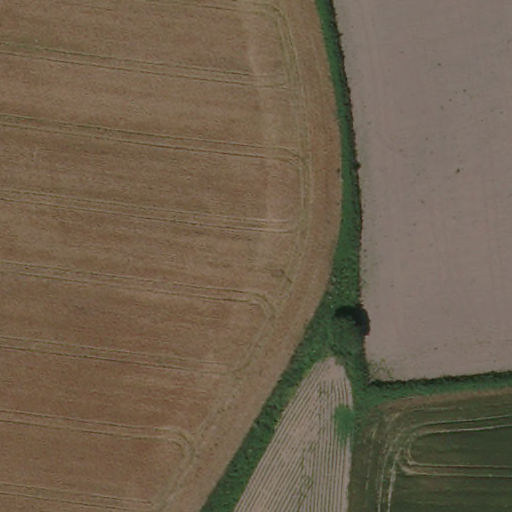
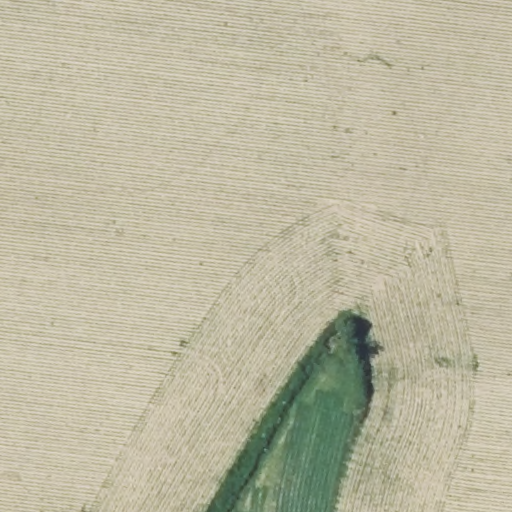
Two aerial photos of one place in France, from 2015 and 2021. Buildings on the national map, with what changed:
[]

